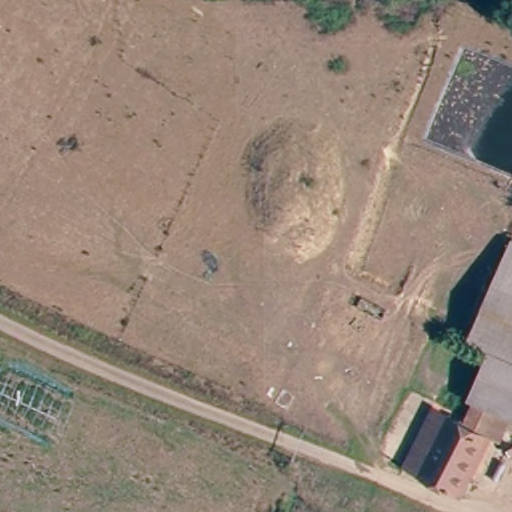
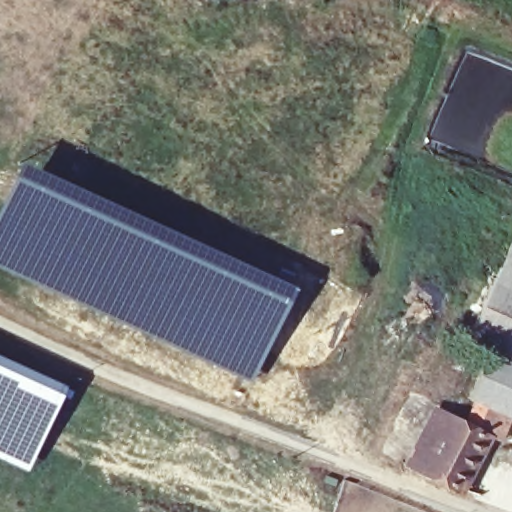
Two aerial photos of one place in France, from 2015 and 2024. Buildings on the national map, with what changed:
new [(61,180),(265,272),(298,289),(272,345),(251,382),(0,268),(0,203),(19,162),(61,180)]
unchanged [(473,400),(478,392),(473,389),(481,374),(497,345),(476,334),(509,276),(512,270),(512,413),(501,435),(488,428),(460,485),(419,467),(410,463),(437,411),(449,417),(459,422),(473,400)]
new [(62,394),(47,420),(25,471),(0,459),(0,356),(66,386),(62,394)]

